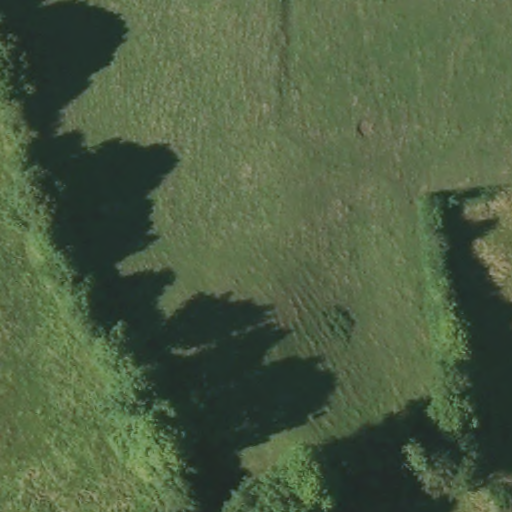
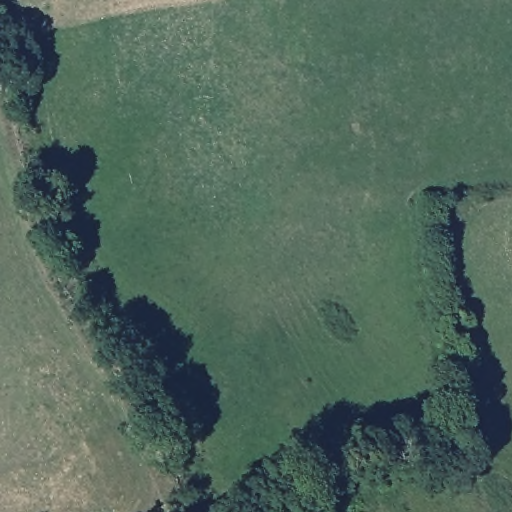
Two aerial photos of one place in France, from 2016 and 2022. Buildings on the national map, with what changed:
[]

